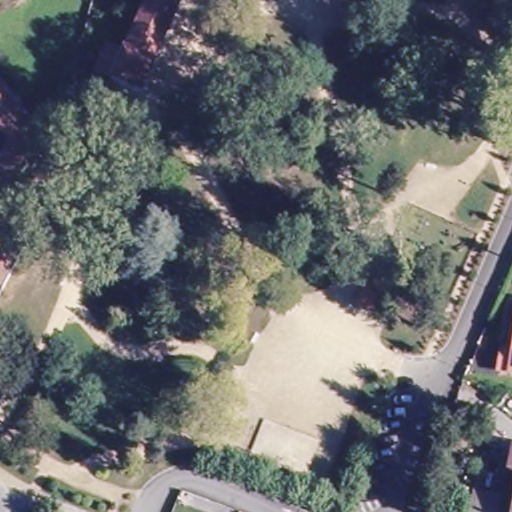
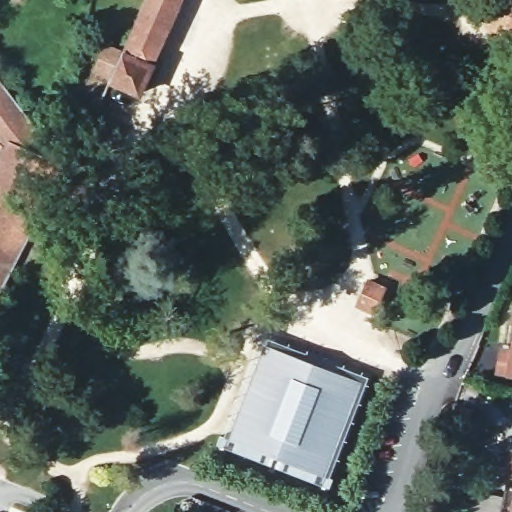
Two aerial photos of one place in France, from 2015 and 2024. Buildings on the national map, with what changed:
unchanged [(115,75),(149,0),(183,0),(145,89),(115,75)]
unchanged [(510,42),(508,37),(497,33),(492,34),(484,14),(490,13),(495,1),(494,0),(512,0),(512,41),(510,42)]
unchanged [(0,137),(0,86),(51,153),(61,165),(9,269),(4,278),(0,274),(0,152),(5,143),(0,137)]
unchanged [(0,285),(0,274),(4,278),(0,285)]
unchanged [(372,309),(360,304),(369,284),(382,289),(372,309)]
new [(328,486),(221,447),(267,338),(369,378),(328,486)]
unchanged [(499,376),(503,356),(512,358),(512,378),(499,376)]
unchanged [(479,501),(508,507),(512,488),(512,512),(476,512),(479,501)]

